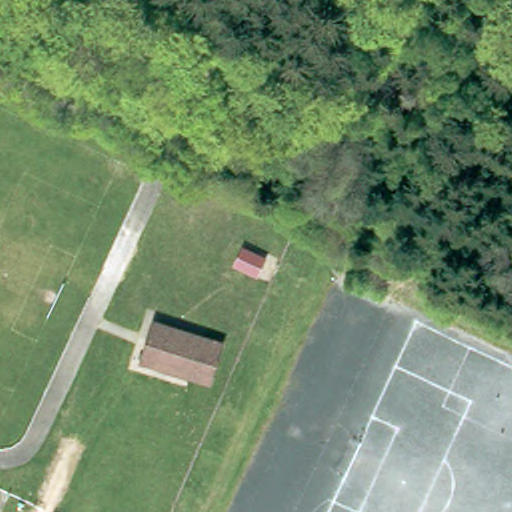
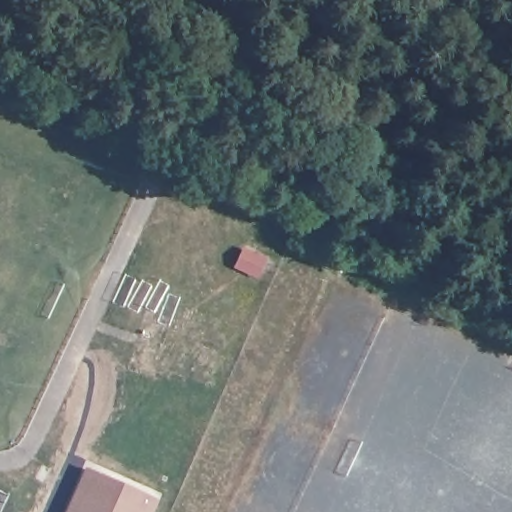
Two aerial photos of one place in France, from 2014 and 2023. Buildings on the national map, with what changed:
demolished [(143,361),(153,329),(155,325),(219,350),(218,352),(205,385),(143,361)]
new [(153,512),(65,512),(86,466),(159,499),(153,512)]

